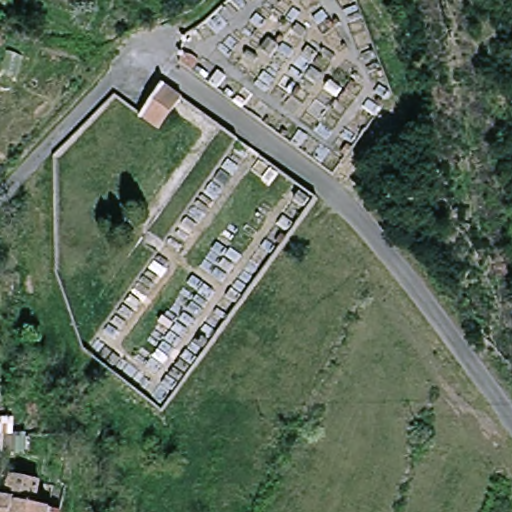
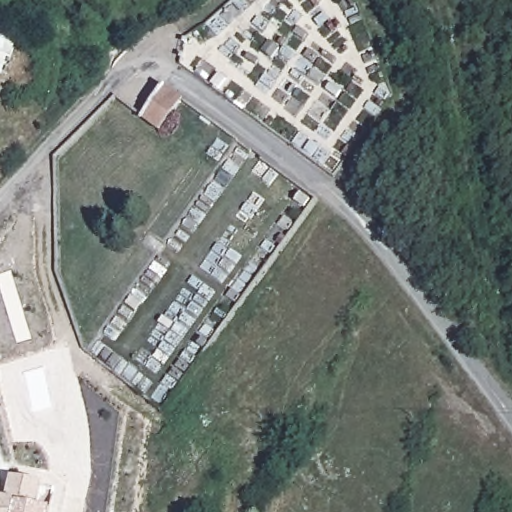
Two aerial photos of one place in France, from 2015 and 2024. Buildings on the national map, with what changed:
unchanged [(186,98),(162,130),(141,114),(165,84),(186,98)]
unchanged [(37,474),(18,470),(22,452),(41,458),(37,474)]
unchanged [(11,509),(15,494),(40,501),(37,512),(0,512),(0,505),(11,509)]

